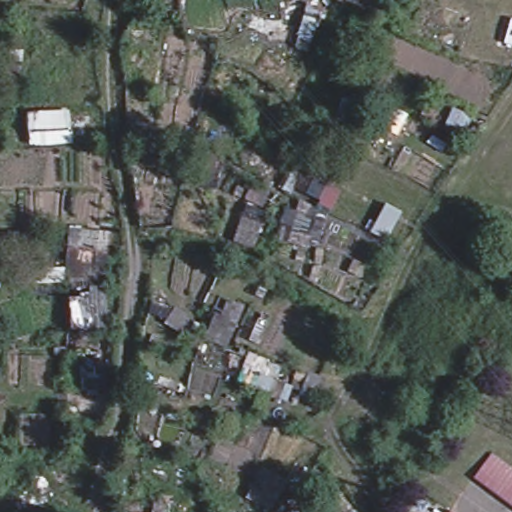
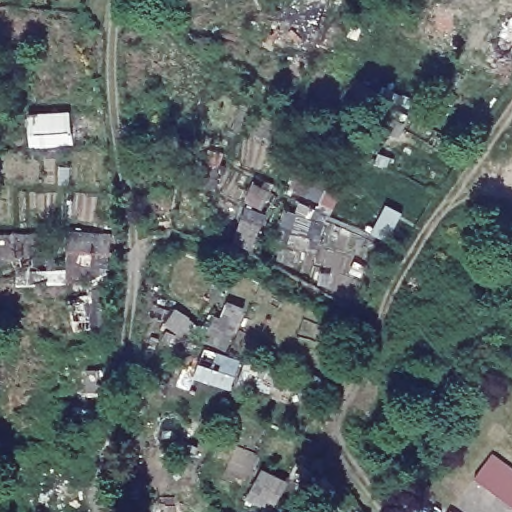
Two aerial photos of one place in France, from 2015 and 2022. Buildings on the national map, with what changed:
unchanged [(493,454),(512,468),(512,501),(479,477),(493,454)]

